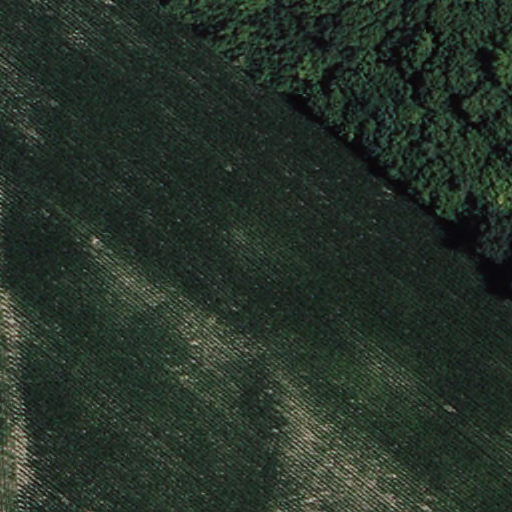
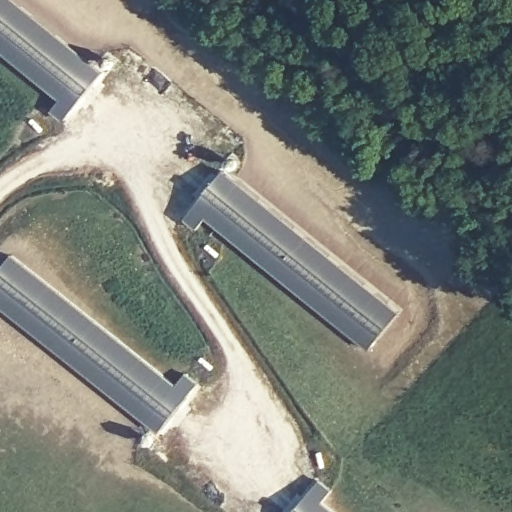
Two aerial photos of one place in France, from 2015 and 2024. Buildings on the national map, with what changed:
new [(61,99),(0,50),(0,0),(15,0),(104,72),(62,121),(51,111),(61,99)]
new [(196,228),(185,219),(226,171),(398,312),(368,350),(206,218),(196,228)]
new [(186,373),(199,384),(159,432),(0,305),(0,271),(13,254),(177,384),(186,373)]
new [(332,491),(322,502),(335,512),(295,512),(320,481),(332,491)]

